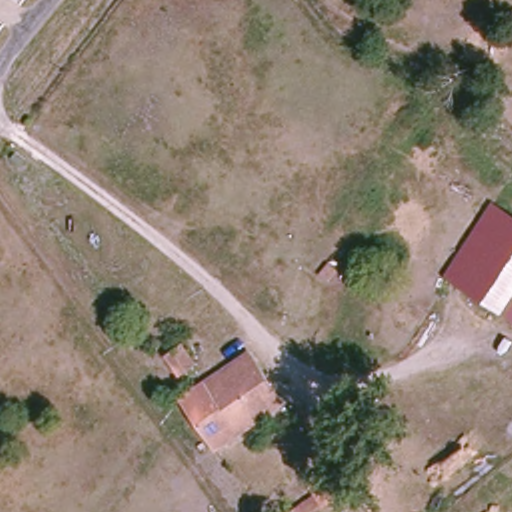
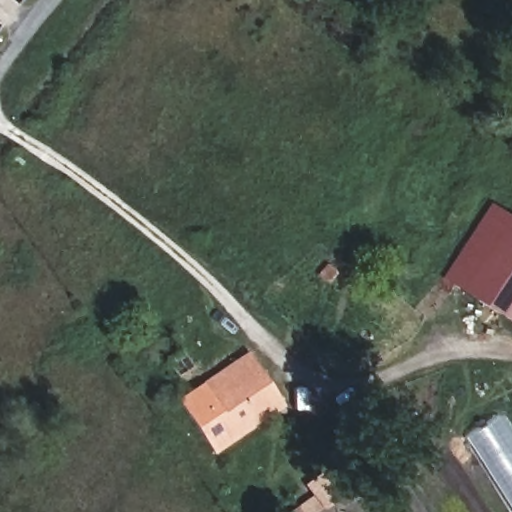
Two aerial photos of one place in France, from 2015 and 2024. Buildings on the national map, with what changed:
unchanged [(451,281),(498,207),(512,216),(512,248),(480,299),(451,281)]
unchanged [(505,314),(480,299),(512,248),(512,303),(505,314)]
unchanged [(505,314),(512,303),(512,318),(505,314)]
unchanged [(181,346),(193,362),(177,371),(167,355),(181,346)]
unchanged [(282,407),(270,416),(212,455),(209,448),(177,402),(247,355),(274,396),(279,403),(282,407)]
new [(468,437),(504,412),(512,426),(512,506),(468,437)]
unchanged [(316,512),(287,512),(314,493),(309,483),(325,473),(339,496),(316,512)]
demolished [(374,482),(389,496),(370,512),(352,497),(374,482)]

